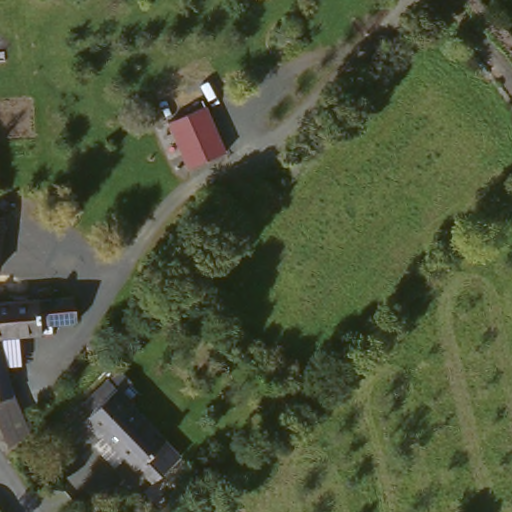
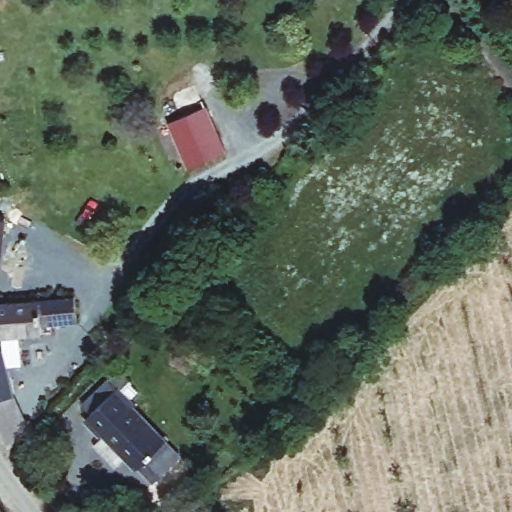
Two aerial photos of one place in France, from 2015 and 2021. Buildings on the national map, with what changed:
unchanged [(167,121),(209,104),(228,152),(187,167),(167,121)]
unchanged [(0,217),(3,217),(0,251),(0,217)]
unchanged [(47,326),(47,334),(16,337),(16,348),(3,348),(2,339),(0,339),(0,303),(73,297),(75,323),(47,326)]
unchanged [(12,397),(28,434),(9,445),(0,426),(0,353),(1,352),(12,397)]
unchanged [(92,446),(102,436),(86,421),(88,419),(78,407),(107,380),(116,390),(122,388),(136,403),(134,406),(166,442),(137,470),(133,466),(125,457),(113,468),(92,446)]

